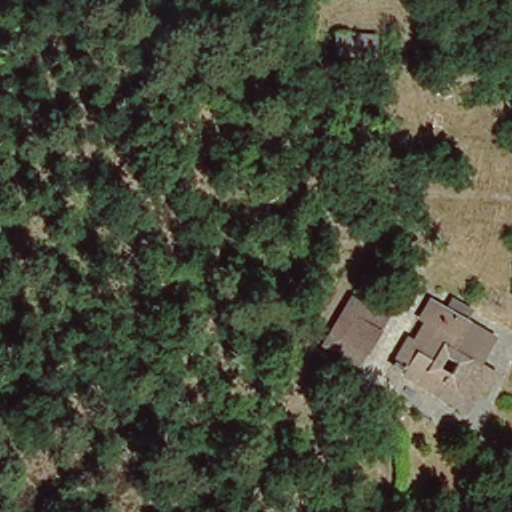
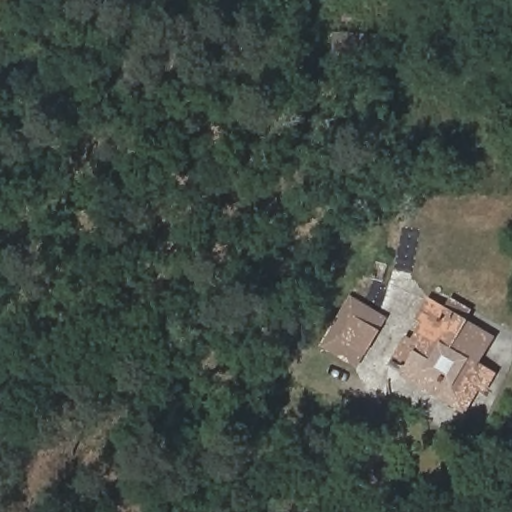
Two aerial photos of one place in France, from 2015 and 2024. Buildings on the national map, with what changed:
unchanged [(468,20),(433,52),(424,40),(458,9),(468,20)]
unchanged [(373,22),(373,52),(324,52),(324,22),(373,22)]
unchanged [(347,298),(381,320),(352,365),(318,343),(347,298)]
unchanged [(478,342),(462,367),(476,376),(451,415),(391,377),(397,368),(387,362),(408,325),(401,320),(413,300),(478,342)]

